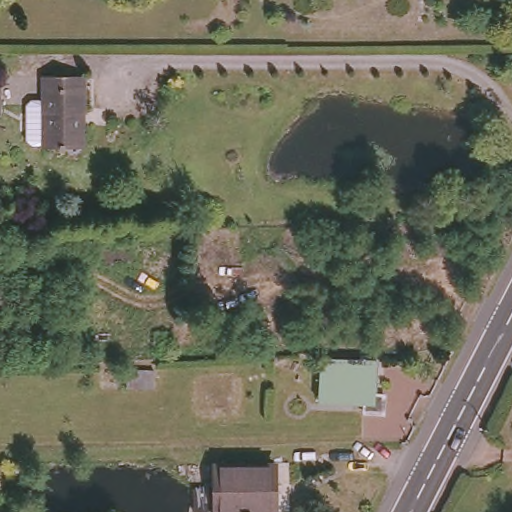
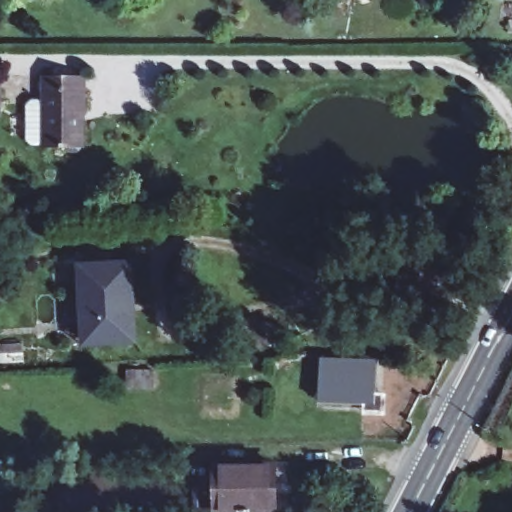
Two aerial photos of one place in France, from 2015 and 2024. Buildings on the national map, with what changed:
unchanged [(90,105),(87,105),(88,141),(86,141),(81,146),(74,146),(69,141),(48,141),(48,69),(90,69),(90,105)]
new [(138,343),(81,342),(82,262),(133,261),(138,343)]
unchanged [(384,409),(361,408),(361,397),(318,395),(321,351),(375,354),(373,386),(385,387),(384,409)]
unchanged [(131,365),(157,365),(158,382),(131,382),(131,365)]
unchanged [(220,481),(219,460),(280,459),(279,504),(197,505),(197,482),(220,481)]

